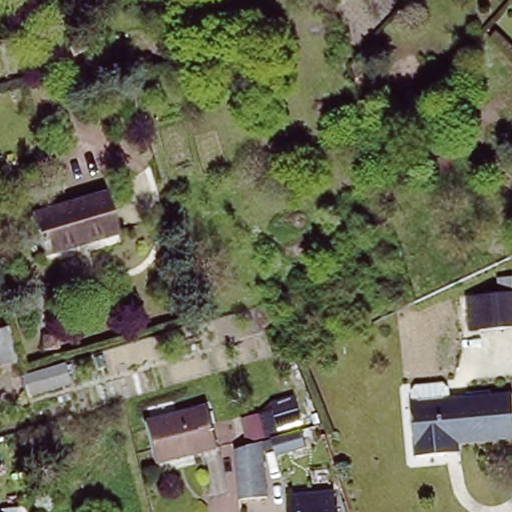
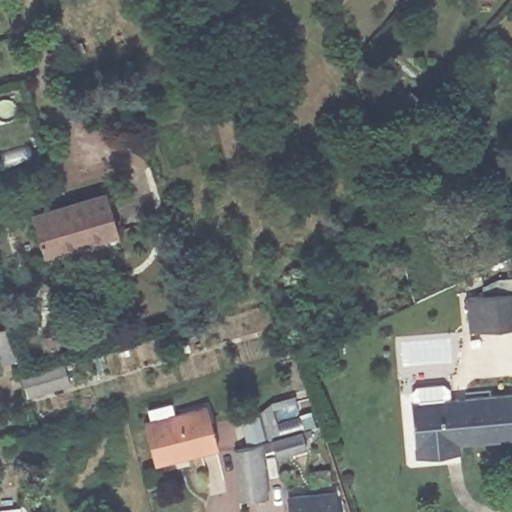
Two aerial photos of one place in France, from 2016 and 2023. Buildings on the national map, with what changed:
unchanged [(105,194),(115,233),(43,254),(32,216),(105,194)]
unchanged [(463,301),(471,300),(510,296),(512,311),(512,331),(475,335),(467,336),(463,301)]
unchanged [(35,334),(50,334),(50,350),(35,349),(35,334)]
unchanged [(0,370),(0,352),(5,369),(0,370)]
unchanged [(65,367),(70,385),(28,398),(23,379),(65,367)]
unchanged [(446,447),(415,452),(408,399),(510,388),(512,401),(512,428),(492,431),(457,436),(458,445),(446,447)]
unchanged [(145,426),(205,408),(217,450),(156,466),(145,426)]
unchanged [(298,428),(300,433),(295,434),(296,445),(266,453),(263,438),(298,428)]
unchanged [(251,441),(257,495),(229,498),(223,449),(251,441)]
unchanged [(15,493),(0,496),(0,485),(12,482),(15,493)]
unchanged [(291,496),(335,492),(337,511),(340,511),(340,512),(292,512),(291,496)]

